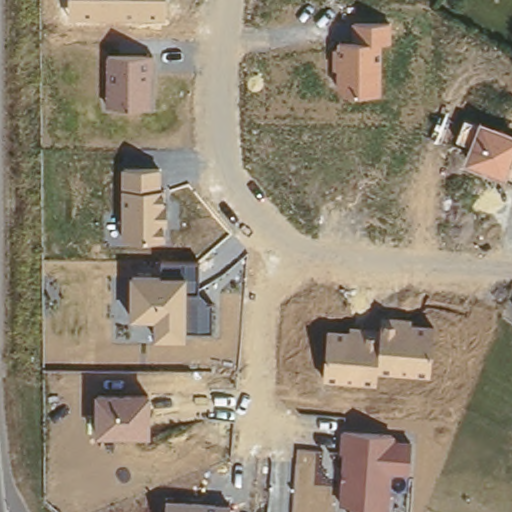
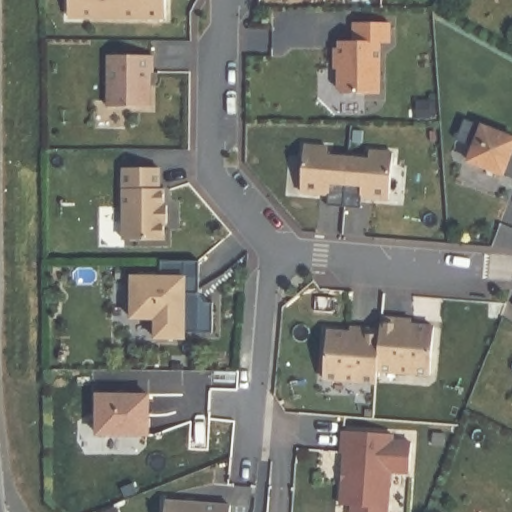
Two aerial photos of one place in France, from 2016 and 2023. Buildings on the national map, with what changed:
unchanged [(166,23),(69,21),(69,0),(166,0),(166,23)]
unchanged [(391,20),(391,45),(382,45),(382,96),(336,97),(335,70),(331,69),(331,46),(340,45),(339,40),(351,40),(351,20),(391,20)]
unchanged [(154,55),(152,110),(107,109),(106,54),(154,55)]
unchanged [(478,122),(480,119),(512,131),(512,177),(508,175),(507,178),(462,164),(467,147),(456,141),(465,118),(478,122)]
new [(304,143),(327,145),(327,153),(368,156),(369,149),(392,150),(388,197),(361,195),(360,206),(343,205),(327,204),(327,191),(300,190),(304,143)]
unchanged [(159,167),(159,188),(164,189),(163,205),(167,205),(167,226),(165,226),(165,240),(121,241),(120,167),(159,167)]
unchanged [(160,274),(161,260),(200,261),(200,291),(212,305),(212,330),(185,331),(185,342),(153,341),(153,320),(129,319),(130,275),(160,274)]
unchanged [(431,376),(377,372),(377,385),(322,380),(326,327),(348,328),(349,323),(381,325),(382,313),(412,316),(412,321),(433,322),(431,376)]
unchanged [(152,437),(94,436),(95,393),(151,391),(152,437)]
unchanged [(395,440),(412,440),(411,473),(391,472),(388,512),(351,512),(351,506),(340,506),(342,451),(338,450),(340,431),(395,432),(395,440)]
unchanged [(166,512),(167,498),(230,502),(229,512),(166,512)]

